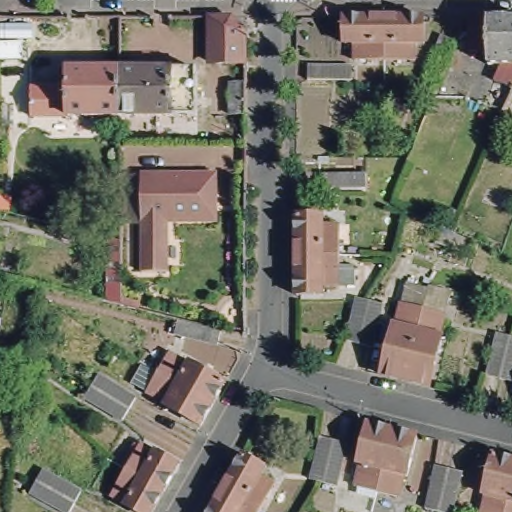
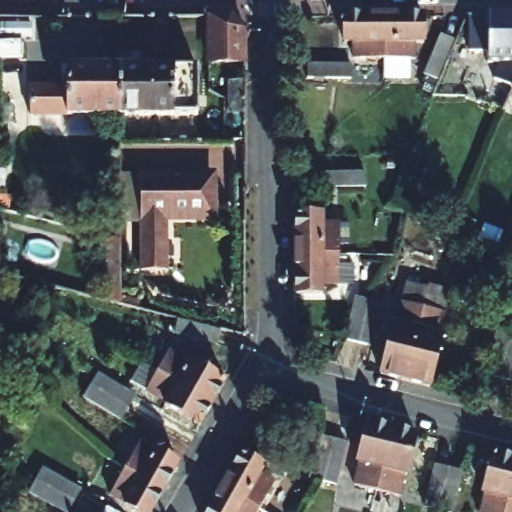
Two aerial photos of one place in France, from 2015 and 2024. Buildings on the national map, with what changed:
unchanged [(229,10),(232,14),(242,26),(242,58),(210,57),(203,52),(204,10),(229,10)]
unchanged [(382,15),(383,58),(353,57),(354,43),(343,43),(343,15),(382,15)]
unchanged [(382,15),(422,15),(422,43),(414,43),(414,58),(383,58),(382,15)]
unchanged [(512,15),(512,88),(502,111),(494,107),(499,94),(492,90),(497,80),(493,78),(499,63),(486,63),(485,50),(469,50),(469,15),(512,15)]
unchanged [(452,105),(431,96),(438,79),(425,74),(442,34),(455,39),(447,59),(467,68),(452,105)]
unchanged [(22,60),(0,59),(0,41),(22,41),(22,60)]
unchanged [(62,110),(63,62),(115,63),(115,110),(62,110)]
unchanged [(115,110),(115,63),(194,63),(193,109),(115,110)]
unchanged [(350,76),(309,76),(308,63),(350,63),(350,76)]
unchanged [(12,111),(12,118),(0,118),(0,80),(12,80),(12,111)]
unchanged [(232,126),(232,113),(232,83),(247,83),(247,113),(247,126),(232,126)]
unchanged [(168,221),(167,269),(136,269),(135,219),(119,218),(120,179),(137,172),(217,172),(217,220),(168,221)]
unchanged [(367,188),(322,187),(322,172),(366,174),(367,188)]
unchanged [(291,249),(291,216),(290,210),(317,210),(317,216),(335,216),(335,249),(291,249)]
unchanged [(350,259),(349,280),(334,280),(318,280),(317,289),(291,290),(291,283),(291,249),(335,249),(335,258),(350,259)]
unchanged [(345,339),(356,297),(370,300),(383,303),(372,345),(360,343),(345,339)]
unchanged [(405,380),(382,374),(392,323),(396,324),(402,301),(424,306),(405,380)]
unchanged [(429,385),(415,382),(405,380),(424,306),(442,310),(437,333),(442,334),(430,386),(429,385)]
unchanged [(212,343),(170,332),(173,320),(215,331),(212,343)]
unchanged [(489,375),(499,334),(510,337),(512,337),(512,381),(501,378),(489,375)]
unchanged [(172,352),(190,363),(191,361),(225,381),(212,403),(160,373),(172,352)]
unchanged [(212,403),(200,425),(168,406),(170,403),(150,390),(138,383),(147,365),(159,372),(160,373),(212,403)]
unchanged [(90,388),(92,386),(98,375),(135,397),(129,408),(127,411),(122,420),(85,397),(90,388)]
unchanged [(354,484),(360,461),(358,461),(367,421),(392,427),(377,490),(354,484)]
unchanged [(392,427),(416,433),(407,472),(402,471),(397,495),(377,490),(392,427)]
unchanged [(345,440),(347,440),(337,481),(325,478),(326,473),(324,478),(312,475),(322,435),(335,438),(345,440)]
unchanged [(140,442),(155,451),(156,450),(179,463),(164,490),(125,468),(140,442)]
unchanged [(260,462),(256,468),(270,477),(254,504),(217,483),(237,449),(260,462)]
unchanged [(505,512),(482,512),(487,492),(484,491),(494,452),(512,457),(512,482),(505,512)]
unchanged [(450,510),(439,507),(434,506),(425,504),(435,462),(449,465),(455,467),(460,468),(450,510)]
unchanged [(67,510),(30,489),(37,477),(42,468),(80,489),(74,498),(67,510)]
unchanged [(151,512),(138,512),(124,504),(125,502),(111,494),(125,468),(164,490),(151,512)]
unchanged [(505,512),(512,482),(512,512),(505,512)]
unchanged [(254,504),(250,512),(201,512),(217,483),(254,504)]

